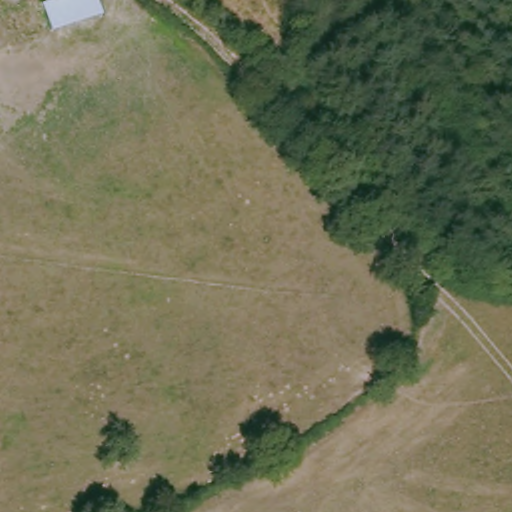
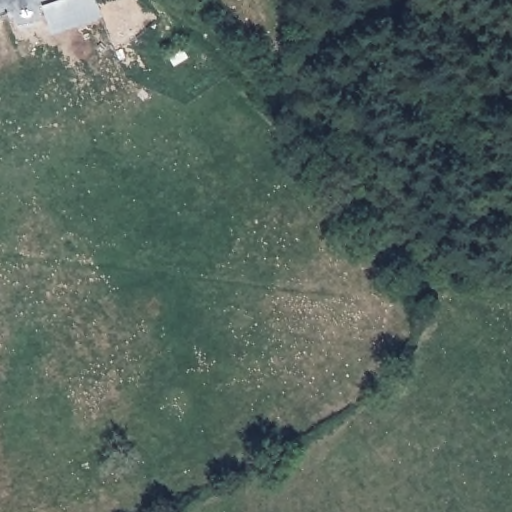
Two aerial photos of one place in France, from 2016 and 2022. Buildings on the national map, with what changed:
unchanged [(64,0),(99,0),(105,18),(53,34),(45,6),(64,0)]

